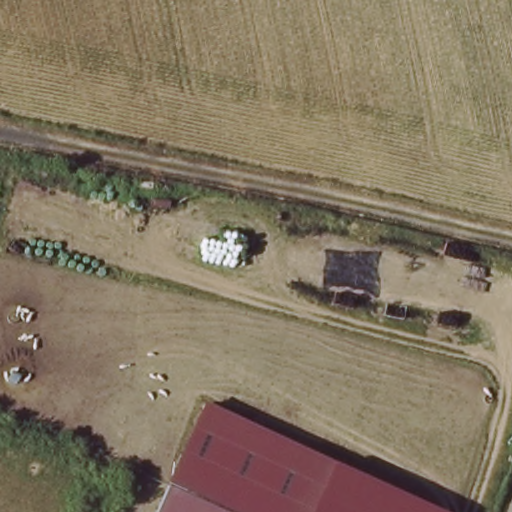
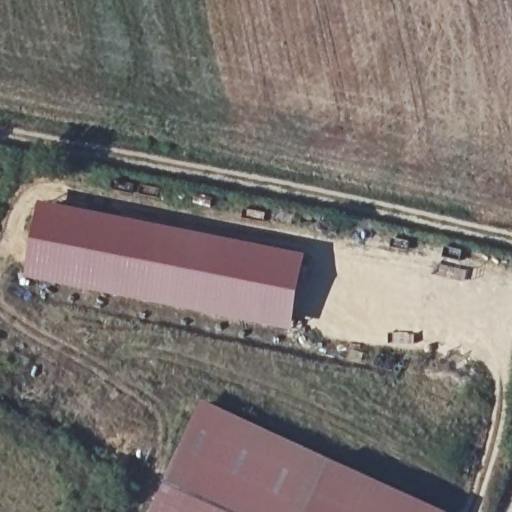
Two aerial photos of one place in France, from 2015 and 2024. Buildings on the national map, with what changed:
new [(311,255),(294,332),(26,280),(43,202),(311,255)]
unchanged [(242,445),(292,466),(396,512),(222,512),(216,510),(173,490),(201,426),(242,445)]
unchanged [(173,490),(216,510),(222,512),(163,512),(171,493),(173,490)]

